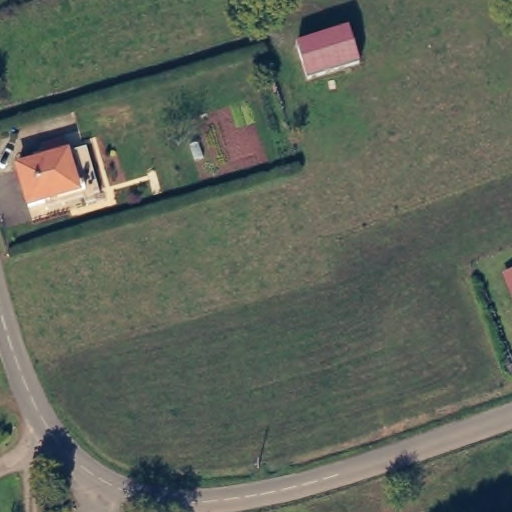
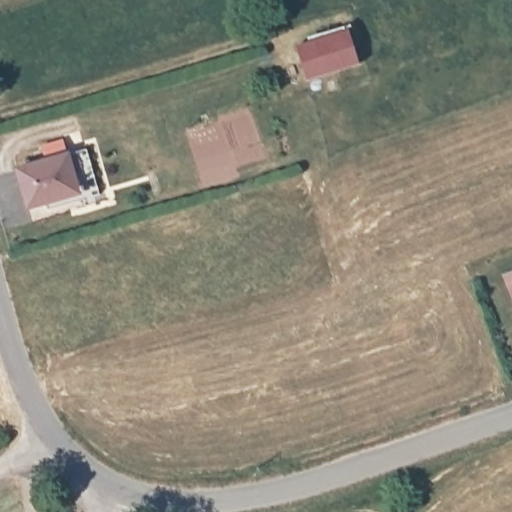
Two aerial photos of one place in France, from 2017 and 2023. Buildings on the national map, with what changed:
unchanged [(360,59),(307,75),(297,41),(350,25),(360,59)]
unchanged [(63,150),(82,144),(95,190),(79,194),(77,187),(40,198),(24,202),(12,164),(63,149),(63,150)]
unchanged [(507,268),(512,266),(512,281),(507,268)]

